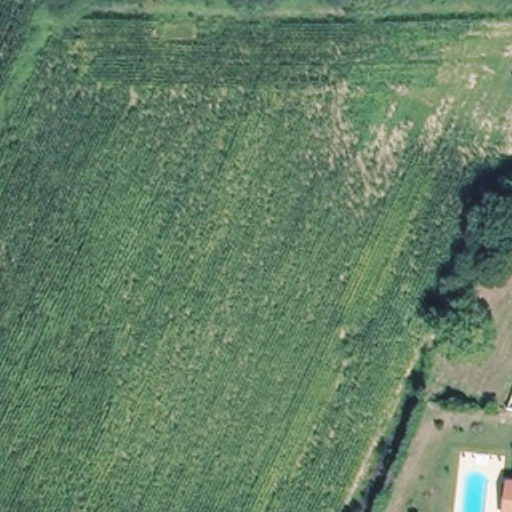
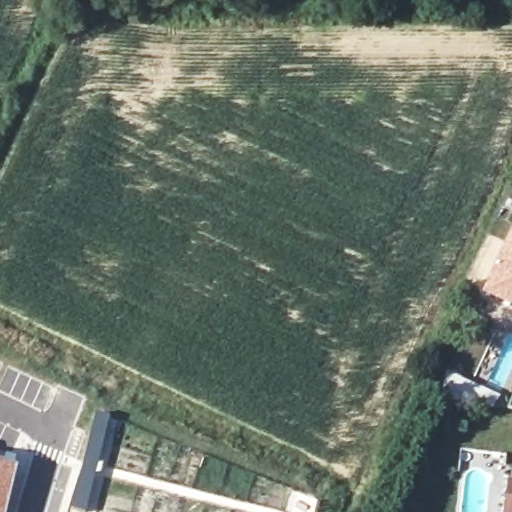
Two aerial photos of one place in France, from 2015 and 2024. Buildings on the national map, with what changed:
new [(482,295),(512,232),(512,309),(482,295)]
demolished [(512,376),(512,388),(508,386),(512,376)]
new [(7,512),(0,512),(0,464),(18,469),(7,512)]
unchanged [(512,485),(512,512),(506,512),(507,485),(512,485)]

